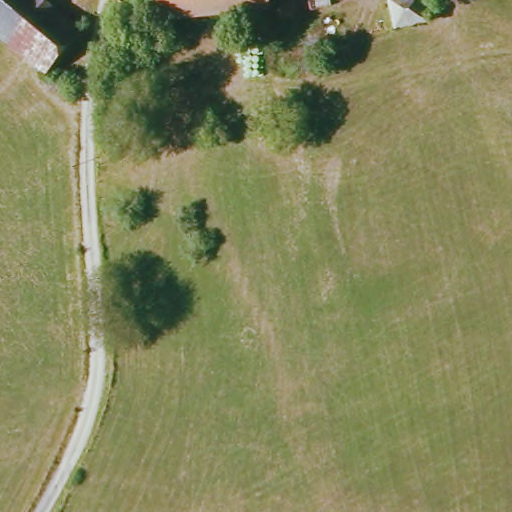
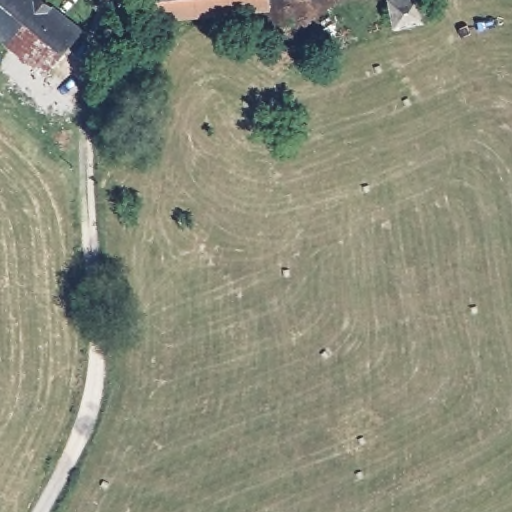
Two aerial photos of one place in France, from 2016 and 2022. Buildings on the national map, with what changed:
unchanged [(46,72),(0,35),(0,0),(43,0),(78,28),(74,39),(46,72)]
unchanged [(151,0),(243,0),(167,36),(151,0)]
unchanged [(432,16),(403,31),(390,6),(400,0),(436,0),(427,10),(432,16)]

